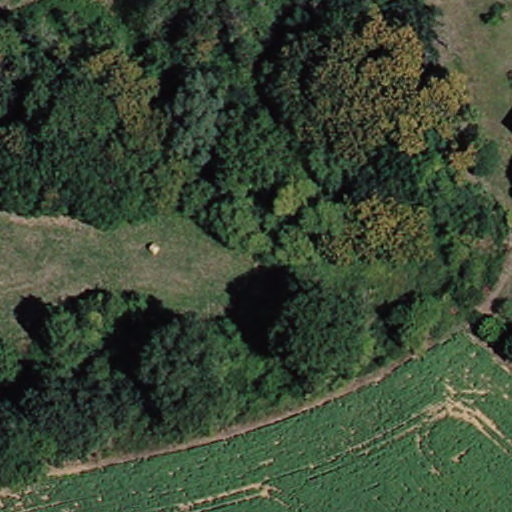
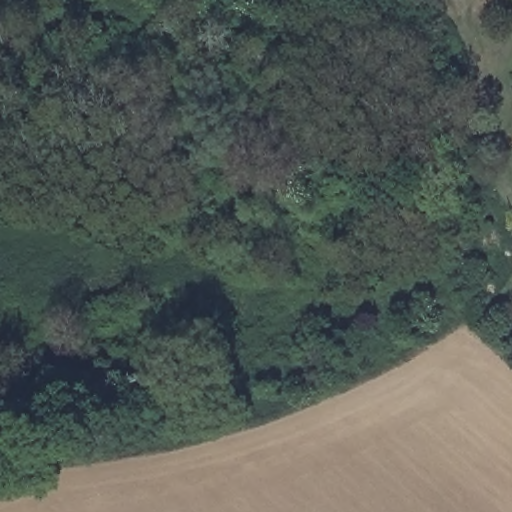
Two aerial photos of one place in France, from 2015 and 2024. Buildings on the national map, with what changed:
unchanged [(510,80),(512,78),(512,81),(510,80)]
unchanged [(510,133),(512,130),(512,135),(510,133)]

